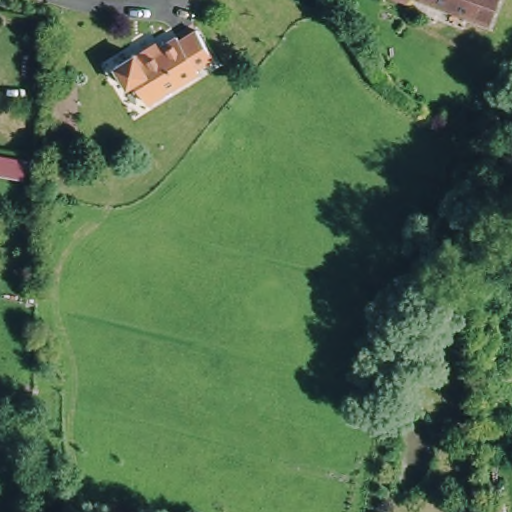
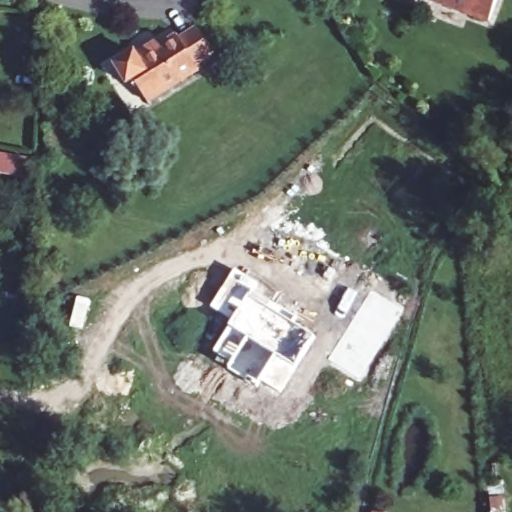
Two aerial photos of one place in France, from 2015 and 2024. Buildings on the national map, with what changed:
unchanged [(489,20),(439,0),(496,0),(489,20)]
unchanged [(137,50),(140,56),(179,36),(181,41),(199,32),(212,60),(200,66),(202,72),(149,99),(136,76),(127,81),(116,60),(137,50)]
new [(259,283),(255,291),(298,317),(294,324),(315,337),(280,395),(260,383),(257,388),(227,371),(232,365),(212,353),(229,327),(233,321),(210,308),(235,269),(259,283)]

